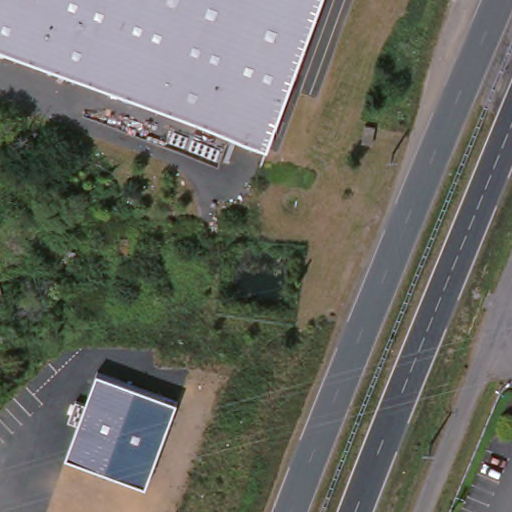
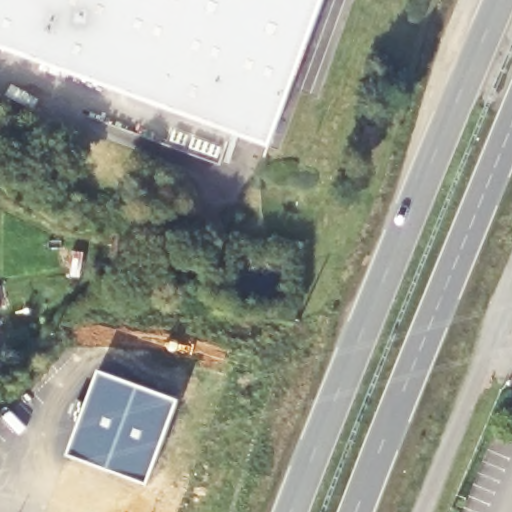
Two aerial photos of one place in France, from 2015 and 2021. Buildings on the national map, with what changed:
unchanged [(273,142),(236,129),(100,81),(0,45),(0,0),(324,0),(273,142)]
unchanged [(373,146),(362,143),(365,126),(376,128),(373,146)]
unchanged [(128,238),(128,254),(116,254),(116,238),(128,238)]
unchanged [(69,251),(82,253),(79,270),(67,269),(69,251)]
unchanged [(7,308),(0,310),(0,286),(1,286),(7,308)]
unchanged [(144,487),(64,457),(98,372),(176,404),(144,487)]

